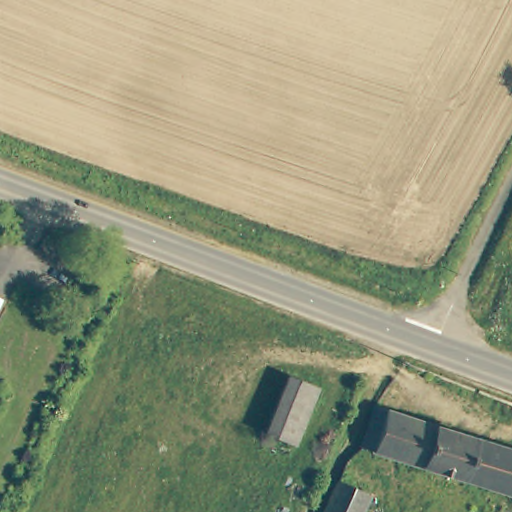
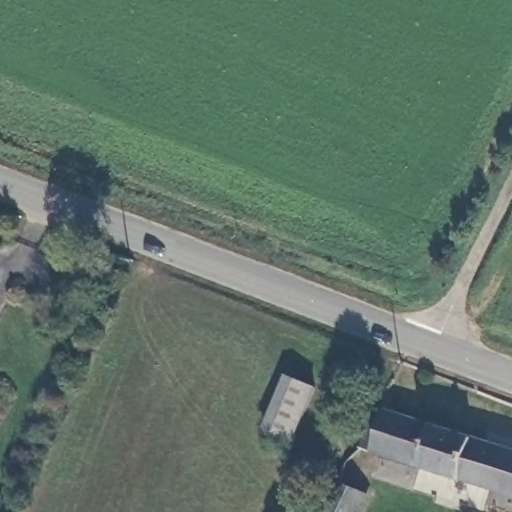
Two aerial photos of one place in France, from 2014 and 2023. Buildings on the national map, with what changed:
unchanged [(290,374),(320,387),(296,441),(265,427),(290,374)]
unchanged [(5,397),(0,408),(0,394),(5,397)]
unchanged [(512,450),(512,493),(423,464),(365,444),(380,405),(512,450)]
unchanged [(369,512),(325,512),(338,481),(375,496),(369,512)]

